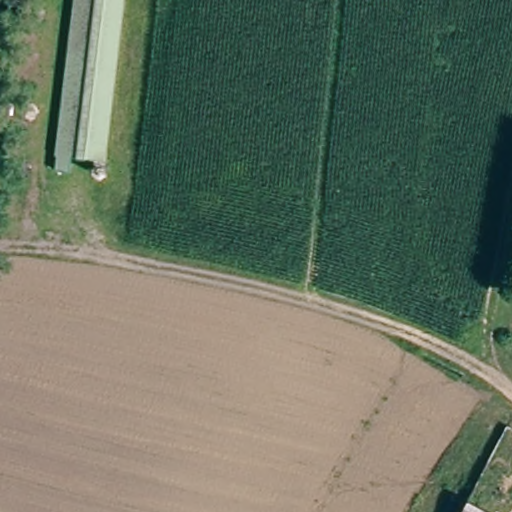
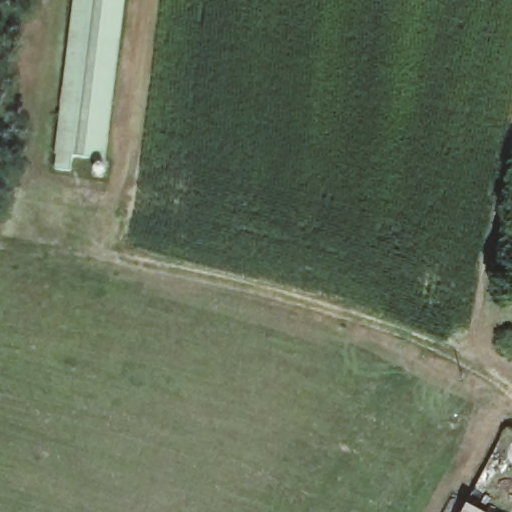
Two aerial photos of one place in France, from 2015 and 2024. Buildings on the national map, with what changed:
unchanged [(108,160),(79,158),(77,175),(60,173),(75,0),(124,0),(108,160)]
unchanged [(510,427),(512,428),(512,493),(502,512),(490,512),(473,503),(510,427)]
unchanged [(490,512),(467,512),(473,503),(490,512)]

